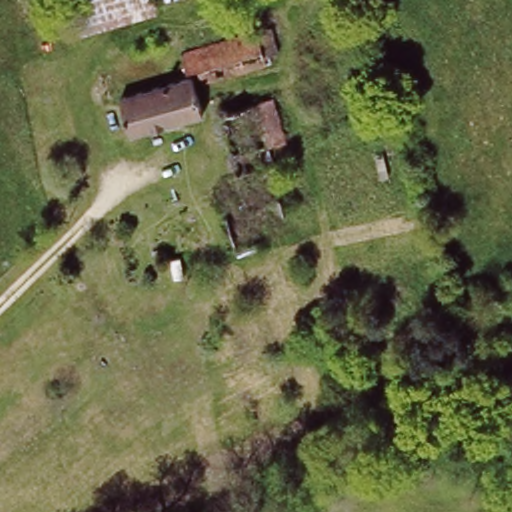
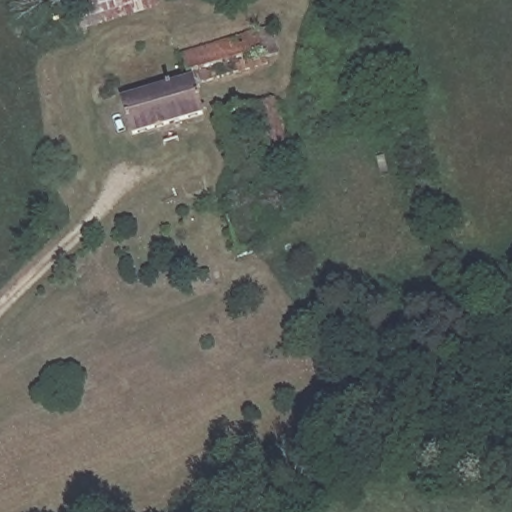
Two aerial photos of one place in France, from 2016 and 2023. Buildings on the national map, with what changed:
unchanged [(82,30),(74,0),(156,0),(157,6),(82,30)]
unchanged [(183,75),(177,50),(268,24),(280,61),(197,84),(210,139),(180,152),(172,125),(131,137),(115,90),(183,75)]

